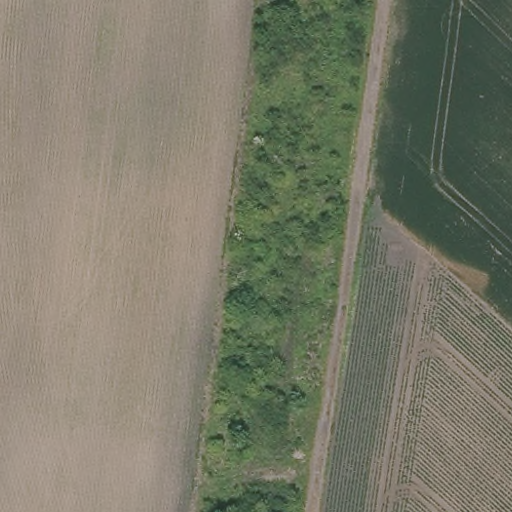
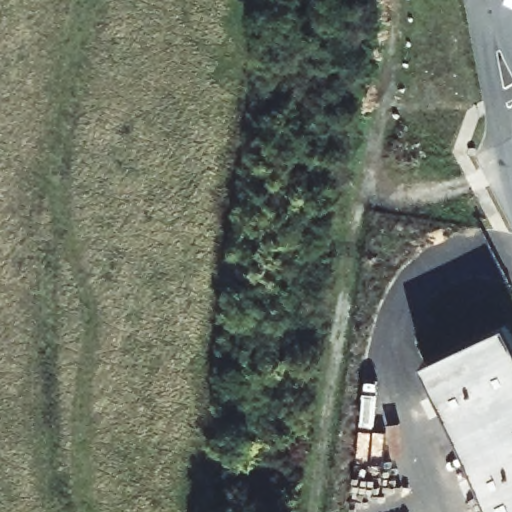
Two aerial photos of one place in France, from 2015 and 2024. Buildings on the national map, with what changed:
new [(507,324),(512,334),(512,512),(493,512),(423,362),(507,324)]

